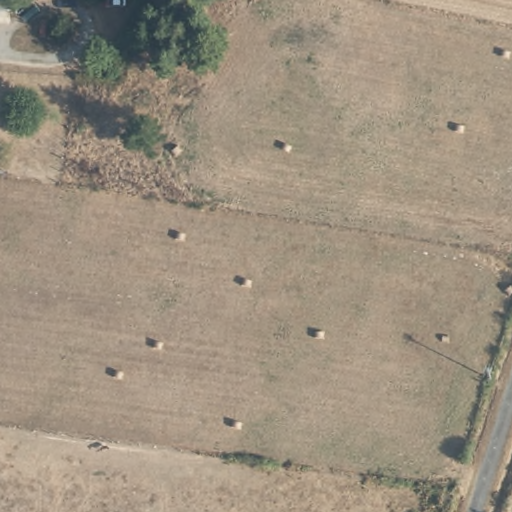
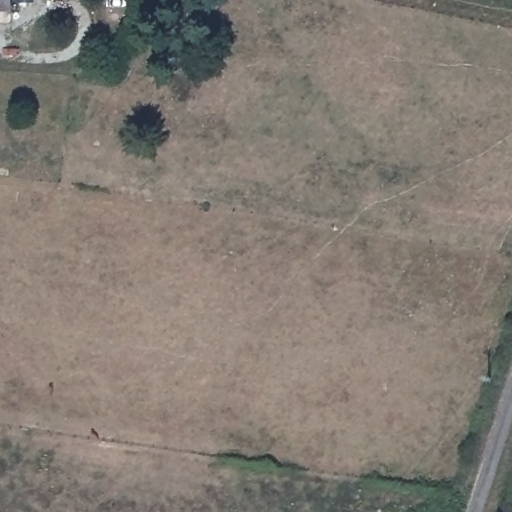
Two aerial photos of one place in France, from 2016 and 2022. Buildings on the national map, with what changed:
unchanged [(5,4),(0,5),(0,0),(6,0),(5,4)]

